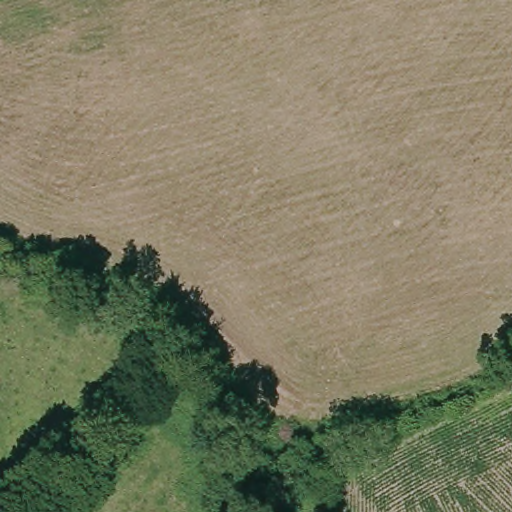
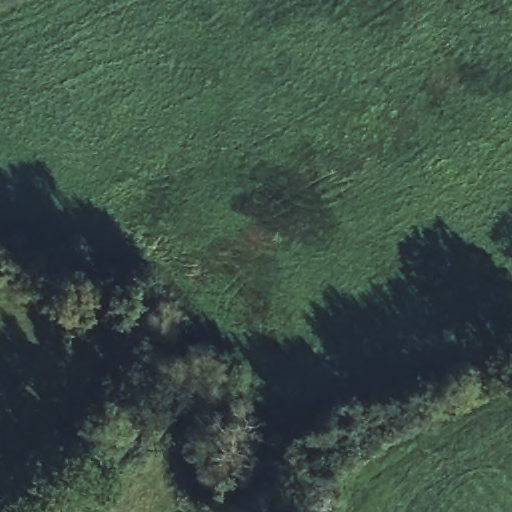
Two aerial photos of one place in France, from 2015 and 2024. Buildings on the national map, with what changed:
[]

